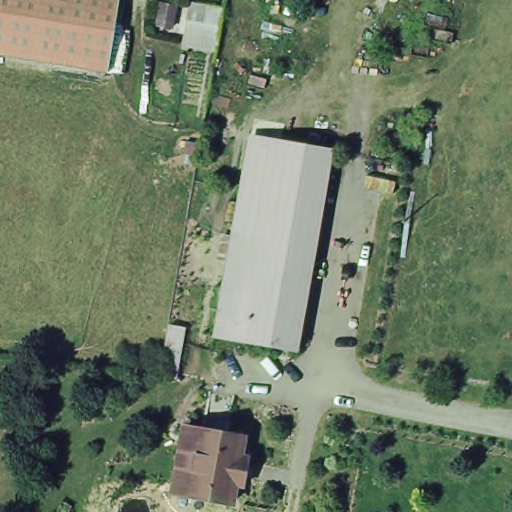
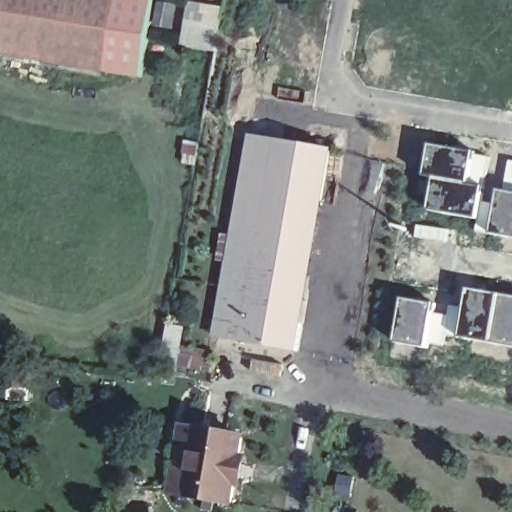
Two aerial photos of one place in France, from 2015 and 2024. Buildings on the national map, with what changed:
unchanged [(146,80),(0,53),(0,0),(158,0),(146,80)]
unchanged [(188,44),(190,22),(193,5),(228,10),(226,27),(221,49),(188,44)]
unchanged [(250,138),(328,154),(293,351),(215,338),(250,138)]
new [(432,143),(493,156),(487,187),(434,179),(426,177),(432,143)]
new [(484,199),(493,201),(495,188),(501,189),(506,158),(512,159),(512,240),(474,233),(478,221),(484,199)]
new [(434,179),(487,187),(484,199),(478,221),(431,212),(434,179)]
new [(461,339),(442,329),(449,304),(466,307),(469,288),(512,294),(512,349),(461,339)]
new [(404,299),(437,304),(428,349),(397,342),(404,299)]
new [(191,328),(188,348),(216,352),(213,373),(178,367),(177,374),(173,374),(174,366),(164,364),(170,325),(191,328)]
unchanged [(185,496),(167,493),(179,427),(196,430),(185,496)]
unchanged [(238,438),(234,462),(241,464),(238,477),(231,475),(228,503),(201,498),(185,496),(196,430),(204,431),(238,438)]

